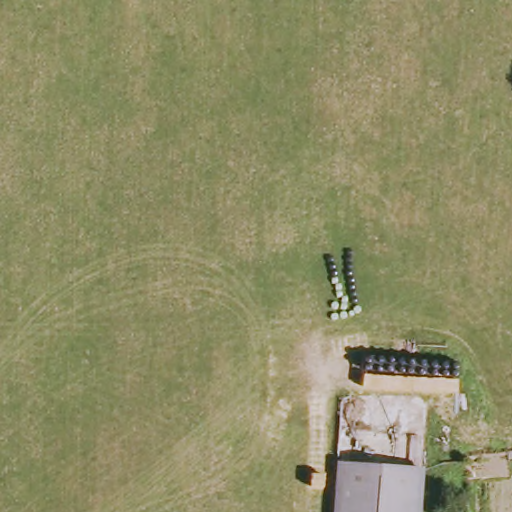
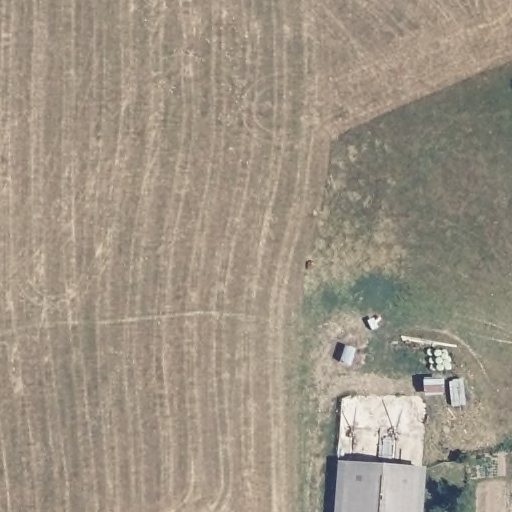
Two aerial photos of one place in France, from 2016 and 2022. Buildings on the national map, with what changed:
unchanged [(345,468),(345,463),(369,465),(430,468),(426,512),(343,512),(345,468)]

